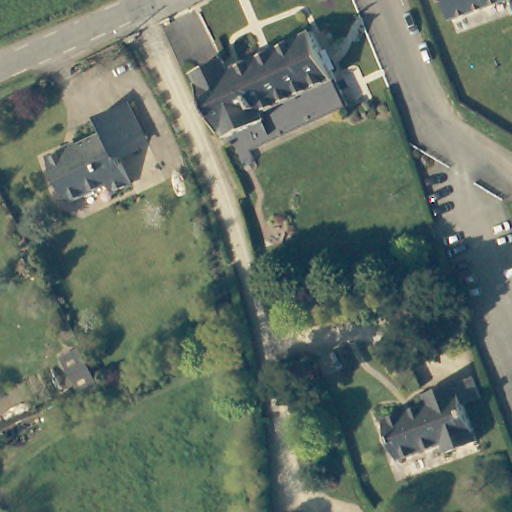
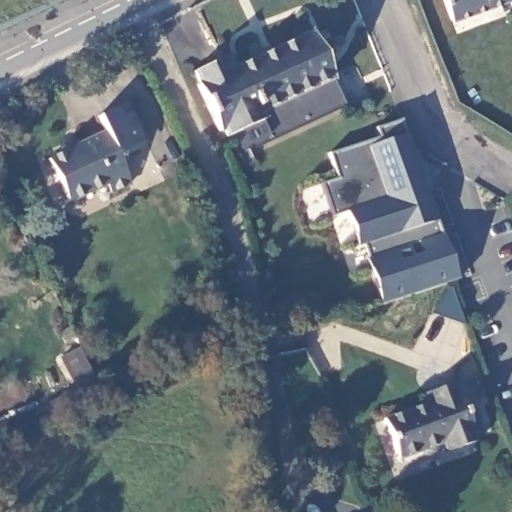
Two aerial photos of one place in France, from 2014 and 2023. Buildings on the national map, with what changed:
unchanged [(444,0),(492,0),(450,17),(444,0)]
unchanged [(200,85),(203,84),(199,72),(227,58),(231,71),(314,31),(348,107),(234,160),(200,85)]
unchanged [(114,187),(75,206),(55,162),(111,135),(104,118),(131,104),(150,142),(122,157),(136,188),(117,197),(114,187)]
new [(460,278),(382,304),(361,247),(359,248),(346,212),(333,217),(320,185),(340,178),(332,155),(382,138),(378,128),(396,122),(460,278)]
unchanged [(196,318),(214,311),(226,336),(210,345),(196,318)]
unchanged [(477,432),(446,443),(443,433),(398,450),(383,409),(428,394),(426,383),(455,373),(477,432)]

